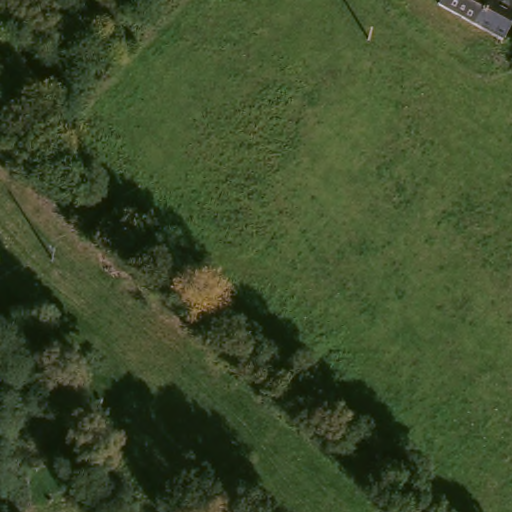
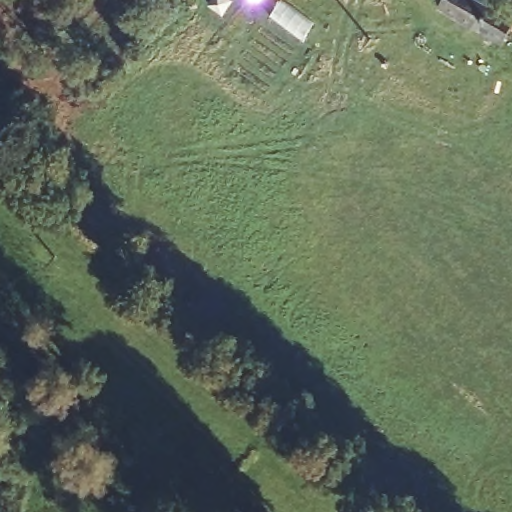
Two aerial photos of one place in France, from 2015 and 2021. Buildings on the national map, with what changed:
unchanged [(512,30),(504,43),(443,6),(447,0),(512,0),(512,30)]

